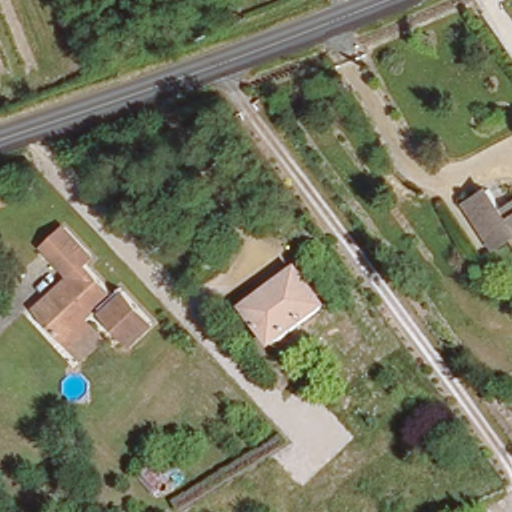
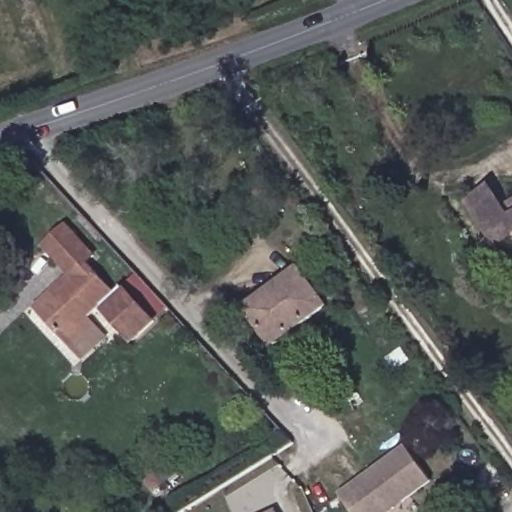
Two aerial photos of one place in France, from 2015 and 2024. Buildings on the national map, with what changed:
unchanged [(9,201),(0,204),(0,183),(3,182),(9,201)]
unchanged [(506,234),(492,244),(461,198),(487,183),(500,202),(512,194),(512,242),(506,234)]
unchanged [(85,358),(64,337),(34,305),(71,269),(43,240),(60,223),(89,254),(83,260),(113,293),(120,287),(150,320),(131,337),(100,303),(86,316),(106,337),(85,358)]
unchanged [(244,303),(294,267),(323,304),(272,341),(244,303)]
new [(393,512),(352,512),(339,494),(404,446),(432,482),(393,512)]
new [(277,510),(278,512),(271,512),(277,510)]

